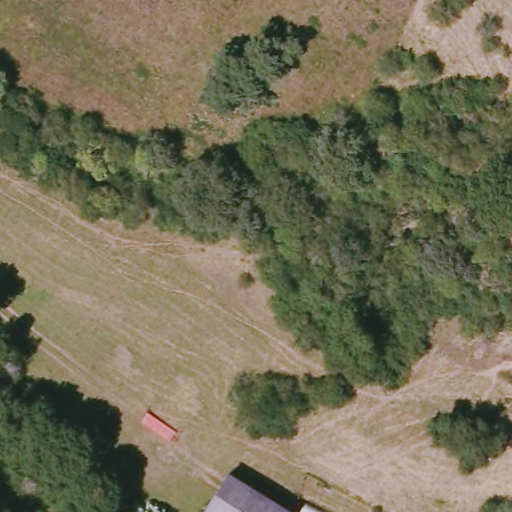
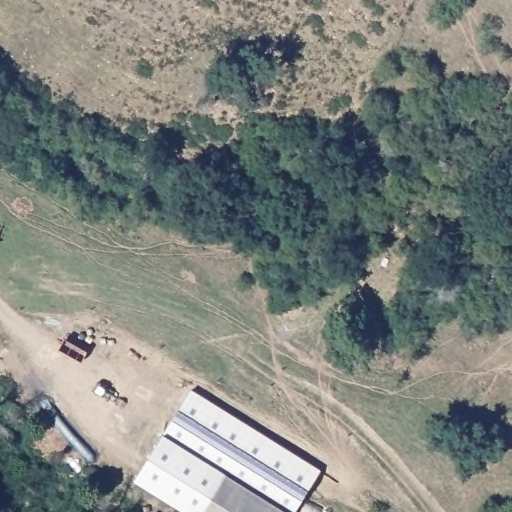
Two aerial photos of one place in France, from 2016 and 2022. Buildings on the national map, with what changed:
new [(136,481),(191,389),(321,470),(301,500),(293,512),(291,512),(227,473),(204,512),(185,512),(136,481)]
unchanged [(291,512),(204,512),(227,473),(291,512)]
unchanged [(301,500),(323,512),(293,512),(301,500)]

